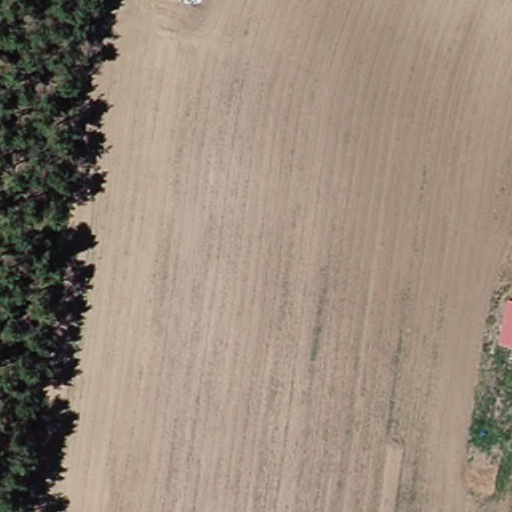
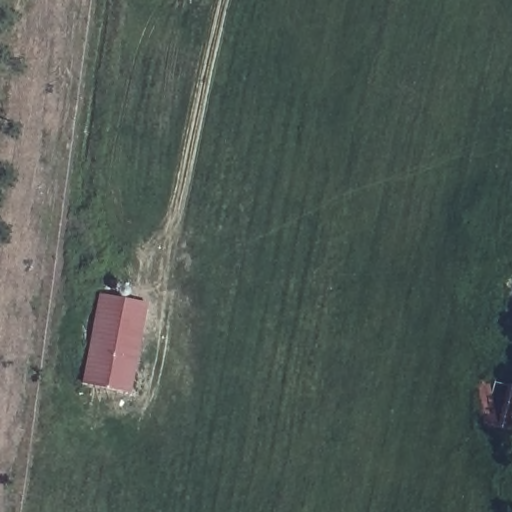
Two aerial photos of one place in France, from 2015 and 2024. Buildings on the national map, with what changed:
new [(99,294),(148,303),(131,394),(82,384),(99,294)]

